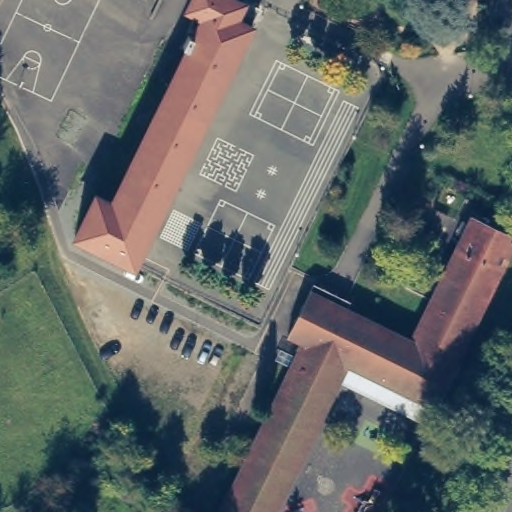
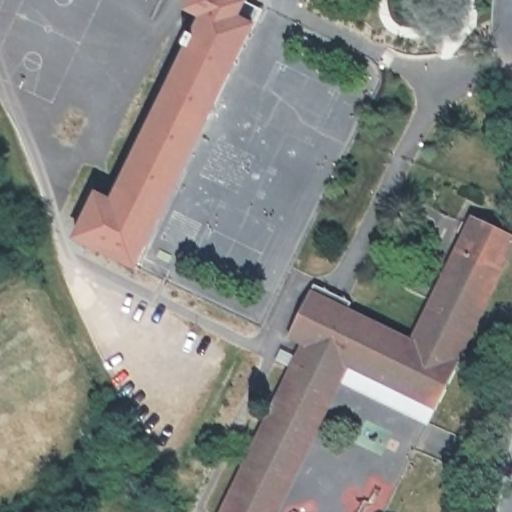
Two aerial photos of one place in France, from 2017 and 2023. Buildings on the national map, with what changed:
unchanged [(148,128),(189,44),(184,43),(189,31),(194,34),(204,13),(188,5),(191,0),(243,0),(236,14),(252,23),(134,262),(77,234),(98,192),(113,199),(133,158),(118,151),(132,120),(148,128)]
unchanged [(413,339),(474,213),(512,231),(512,241),(454,359),(458,361),(437,403),(436,402),(348,359),(273,512),(221,512),(306,339),(289,330),(310,289),(413,339)]

